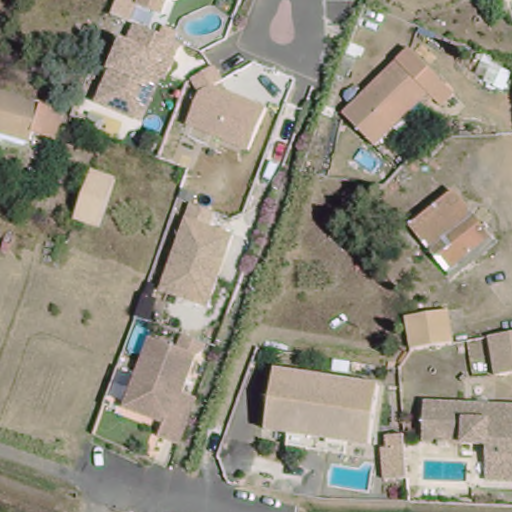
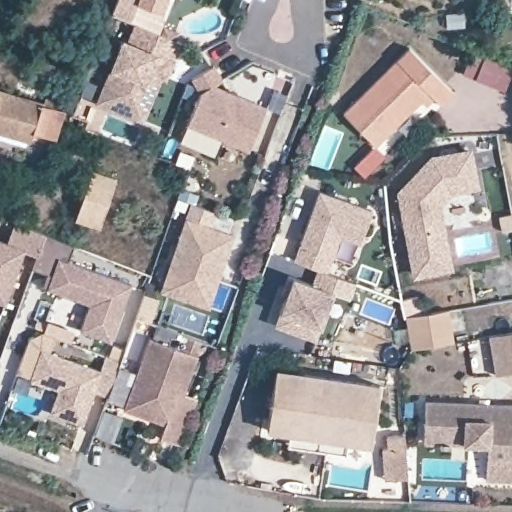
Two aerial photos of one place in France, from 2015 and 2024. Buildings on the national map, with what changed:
unchanged [(141,0),(170,0),(165,12),(141,2),(141,0)]
unchanged [(122,32),(132,37),(140,20),(186,40),(170,77),(164,75),(144,121),(95,99),(122,32)]
new [(506,91),(463,74),(472,49),(512,65),(512,73),(506,91)]
unchanged [(453,93),(440,107),(427,97),(378,151),(345,120),(406,54),(453,93)]
unchanged [(248,152),(186,125),(201,93),(192,79),(215,67),(223,82),(214,86),(266,108),(248,152)]
unchanged [(46,100),(69,107),(61,137),(35,129),(33,139),(0,128),(0,86),(46,100)]
new [(396,192),(431,156),(473,148),(479,189),(453,194),(442,206),(453,270),(412,278),(396,192)]
unchanged [(118,177),(99,230),(72,218),(89,167),(118,177)]
new [(372,211),(359,244),(341,237),(332,257),(327,272),(356,284),(350,300),(334,292),(321,328),(316,342),(275,326),(277,313),(292,276),(309,282),(318,270),(293,260),(318,191),(372,211)]
demolished [(491,249),(443,282),(415,242),(433,232),(425,218),(458,197),(491,249)]
unchanged [(195,201),(221,210),(217,225),(238,232),(214,305),(165,291),(195,201)]
new [(8,242),(15,222),(74,245),(69,261),(132,285),(112,342),(79,332),(89,303),(45,289),(50,273),(34,268),(39,257),(25,252),(7,303),(0,301),(0,240),(8,242)]
unchanged [(449,312),(453,345),(412,350),(408,317),(449,312)]
unchanged [(490,332),(512,329),(512,376),(498,378),(490,332)]
unchanged [(150,336),(202,354),(188,390),(201,395),(184,441),(163,433),(168,417),(128,402),(150,336)]
new [(40,349),(100,371),(105,356),(120,361),(108,397),(93,391),(81,423),(49,412),(57,389),(29,379),(40,349)]
unchanged [(294,448),(295,432),(272,431),(276,372),(380,380),(375,439),(351,437),(349,453),(294,448)]
unchanged [(430,438),(436,395),(512,406),(512,487),(490,484),(494,455),(442,447),(443,441),(430,438)]
unchanged [(385,443),(389,443),(389,433),(407,432),(413,478),(389,480),(385,443)]

